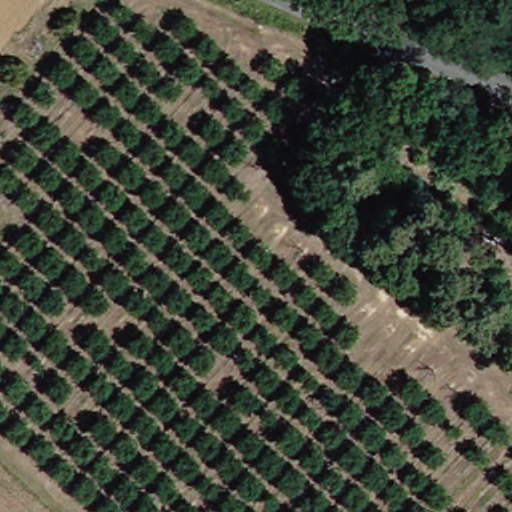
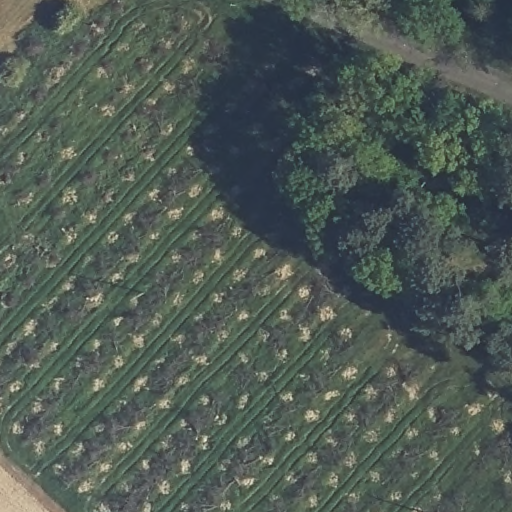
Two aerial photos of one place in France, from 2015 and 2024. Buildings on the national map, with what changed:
[]

